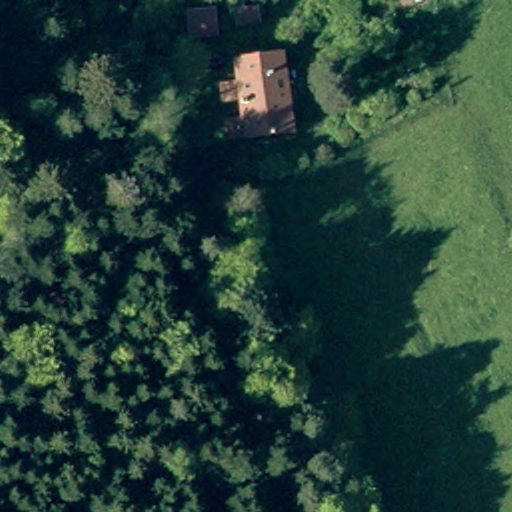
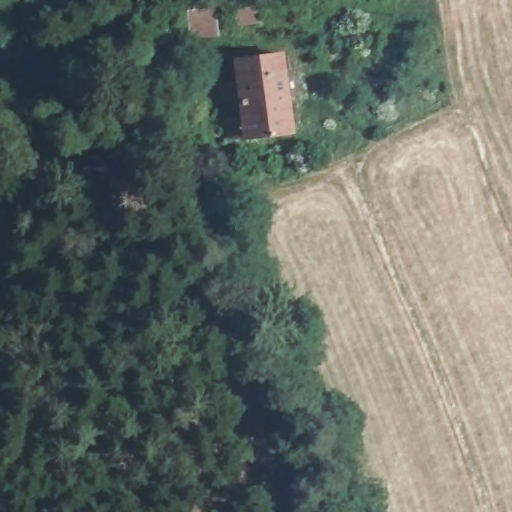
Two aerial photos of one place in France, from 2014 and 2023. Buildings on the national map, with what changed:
unchanged [(230,5),(229,0),(253,0),(254,0),(230,5)]
unchanged [(230,133),(224,107),(246,103),(242,84),(224,86),(220,70),(240,66),(238,49),(283,42),(286,60),(297,122),(230,133)]

